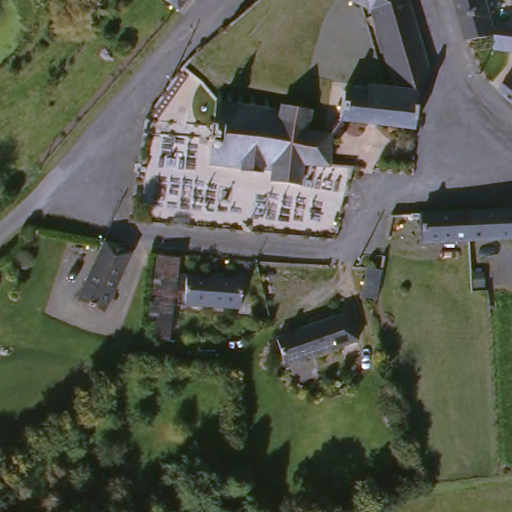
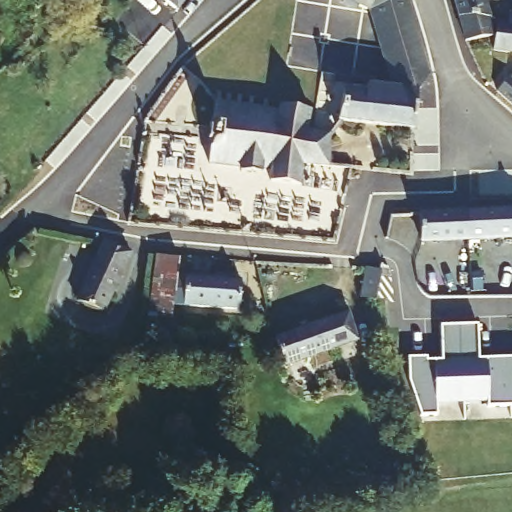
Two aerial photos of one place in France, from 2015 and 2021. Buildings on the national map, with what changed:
unchanged [(175,4),(174,4),(170,0),(178,0),(175,4)]
unchanged [(433,75),(421,93),(398,90),(373,8),(356,0),(409,0),(433,75)]
unchanged [(494,32),(467,38),(455,0),(485,0),(494,32)]
unchanged [(511,22),(511,12),(512,12),(512,51),(493,49),(497,20),(511,22)]
unchanged [(512,84),(512,107),(496,93),(508,81),(512,84)]
unchanged [(346,95),(366,97),(371,98),(372,88),(398,90),(421,93),(415,131),(344,125),(346,95)]
unchanged [(220,104),(284,109),(284,103),(316,105),(314,128),(334,131),(331,168),(308,165),(306,187),(273,184),(275,170),(266,169),(265,174),(246,171),(246,166),(215,164),(220,104)]
unchanged [(512,209),(512,236),(424,239),(403,239),(404,212),(424,211),(512,209)]
unchanged [(100,238),(127,248),(106,305),(79,297),(100,238)]
unchanged [(151,248),(176,250),(175,268),(173,298),(171,331),(155,330),(155,314),(148,313),(146,300),(151,248)]
unchanged [(364,265),(380,266),(377,299),(363,296),(364,265)]
unchanged [(175,268),(240,275),(238,304),(173,298),(175,268)]
unchanged [(347,312),(358,337),(283,364),(273,339),(347,312)]
new [(487,400),(437,400),(437,415),(421,416),(408,381),(408,360),(427,359),(427,361),(441,360),(440,326),(476,324),(478,358),(512,358),(512,406),(488,407),(487,400)]

